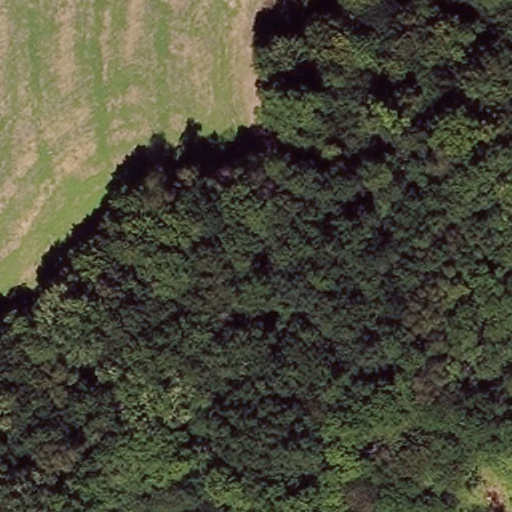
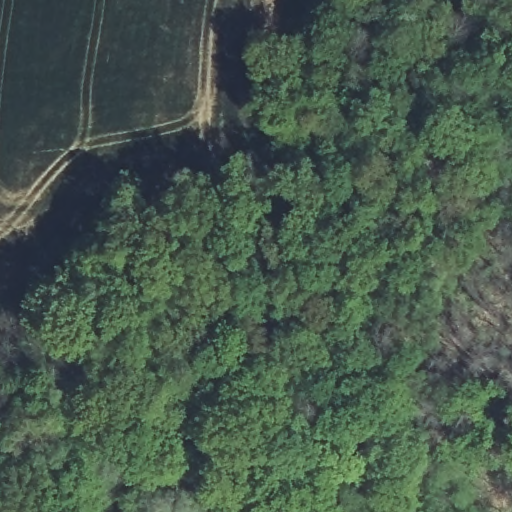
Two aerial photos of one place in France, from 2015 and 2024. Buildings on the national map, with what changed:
[]

